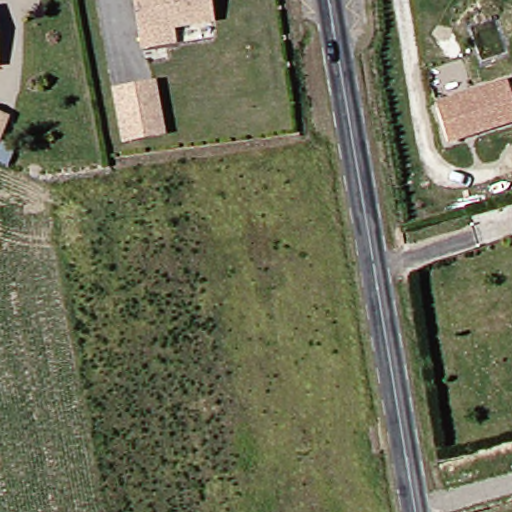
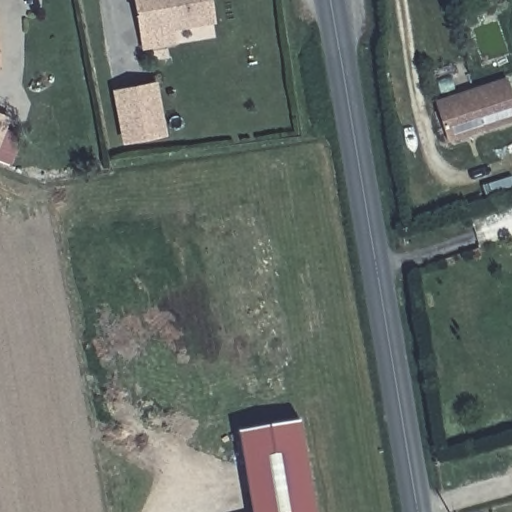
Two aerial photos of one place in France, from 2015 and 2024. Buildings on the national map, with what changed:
unchanged [(176,25),(177,41),(147,45),(142,0),(216,0),(220,19),(176,25)]
unchanged [(4,13),(3,36),(2,69),(0,69),(0,13),(4,13)]
unchanged [(512,119),(451,144),(437,111),(435,106),(472,91),(505,79),(512,95),(512,119)]
unchanged [(119,91),(157,85),(165,133),(127,139),(119,91)]
unchanged [(9,113),(0,129),(0,107),(9,113)]
new [(306,423),(320,512),(256,512),(244,433),(306,423)]

